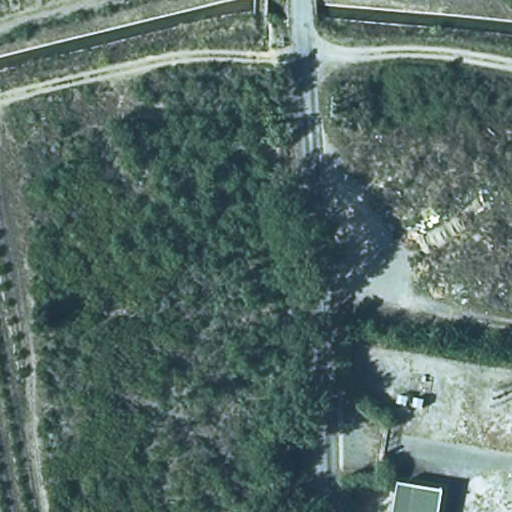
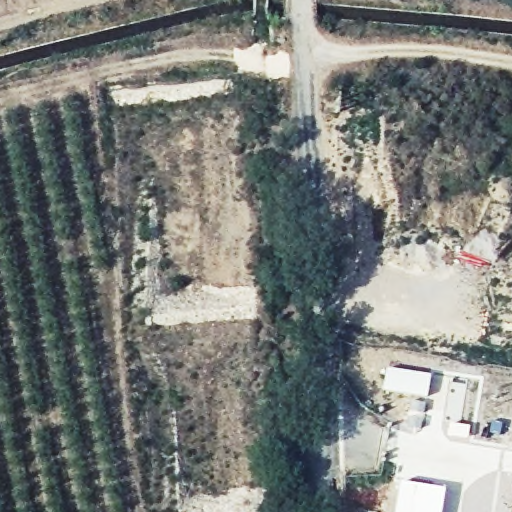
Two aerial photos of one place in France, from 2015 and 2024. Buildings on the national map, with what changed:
unchanged [(445,490),(441,512),(393,512),(397,482),(445,490)]

